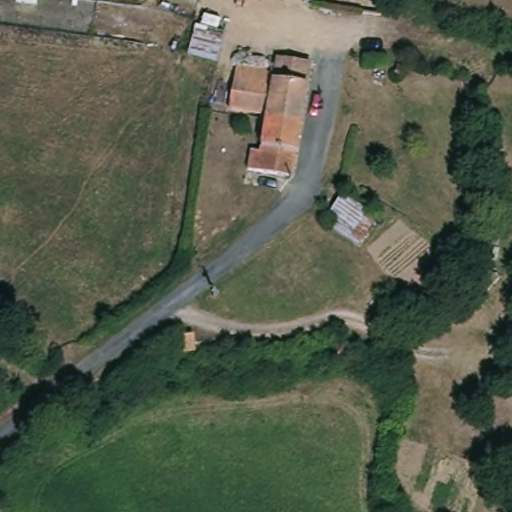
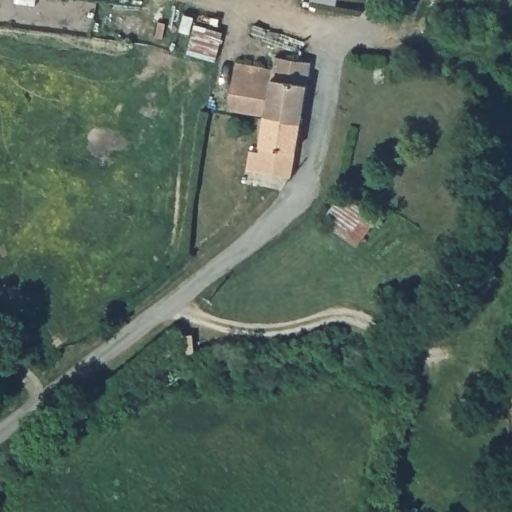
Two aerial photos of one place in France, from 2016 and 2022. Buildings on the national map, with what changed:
unchanged [(222,36),(216,61),(188,54),(195,28),(222,36)]
unchanged [(253,169),(255,150),(265,151),(266,137),(261,136),(265,116),(271,117),(271,116),(271,113),(234,109),(241,63),(278,69),(281,56),(315,62),(313,76),(305,122),(305,126),(297,177),(253,169)]
unchanged [(377,217),(357,246),(330,227),(334,220),(327,215),(341,193),(377,217)]
unchanged [(483,292),(475,284),(490,268),(493,272),(499,277),(485,293),(483,292)]
unchanged [(482,293),(472,303),(464,296),(473,286),(482,293)]
unchanged [(435,310),(452,301),(458,312),(441,322),(435,310)]
unchanged [(0,308),(15,320),(4,334),(0,331),(0,308)]
unchanged [(195,351),(179,352),(177,336),(184,335),(193,334),(195,351)]

